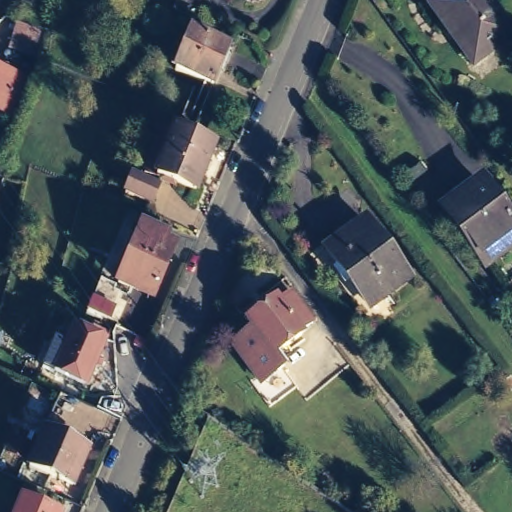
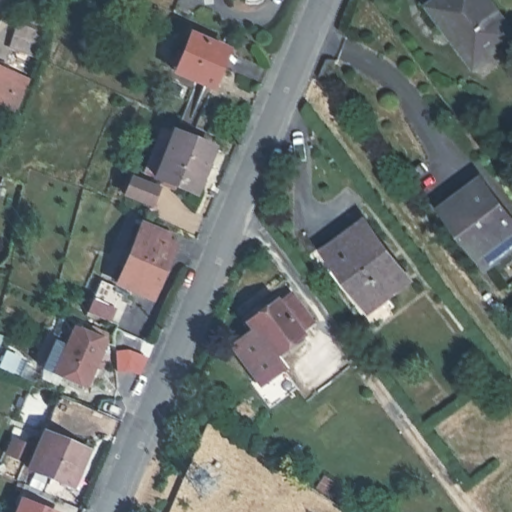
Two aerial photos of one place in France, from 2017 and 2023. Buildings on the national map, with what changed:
unchanged [(474,0),(506,44),(467,72),(424,15),(443,0),(474,0)]
unchanged [(47,32),(40,56),(10,46),(17,22),(47,32)]
unchanged [(227,54),(212,91),(175,76),(190,39),(227,54)]
unchanged [(5,74),(28,84),(12,120),(0,116),(0,67),(7,70),(5,74)]
unchanged [(150,183),(167,137),(220,157),(202,204),(150,183)]
unchanged [(475,270),(469,260),(434,212),(470,186),(504,233),(512,243),(475,270)]
unchanged [(136,187),(162,198),(155,215),(130,205),(136,187)]
unchanged [(402,283),(363,312),(320,255),(360,226),(402,283)]
unchanged [(117,287),(142,230),(157,236),(164,239),(162,245),(174,250),(152,301),(117,287)]
unchanged [(227,355),(247,340),(241,332),(237,328),(249,320),(252,324),(269,310),(270,312),(284,302),(307,333),(294,343),(295,345),(269,365),(277,377),(255,393),(227,355)]
unchanged [(105,338),(86,388),(53,375),(73,324),(105,338)]
unchanged [(504,396),(497,387),(510,378),(512,381),(512,391),(504,396)]
unchanged [(44,436),(87,455),(72,492),(29,473),(44,436)]
unchanged [(20,504),(40,512),(17,512),(20,504)]

